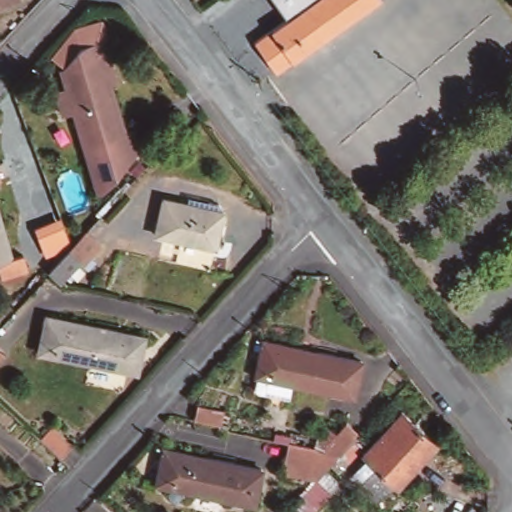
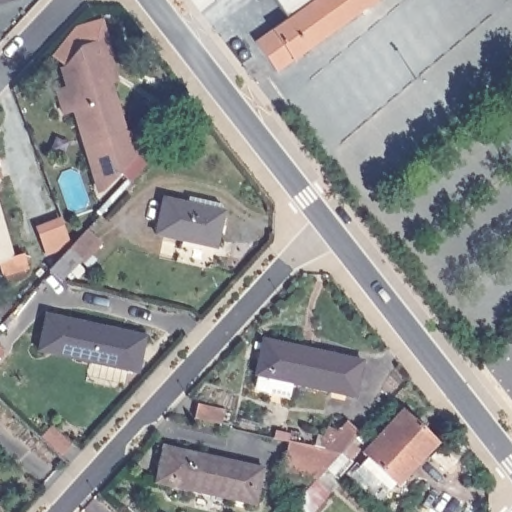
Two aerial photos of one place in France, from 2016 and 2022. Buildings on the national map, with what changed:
unchanged [(0,0),(21,0),(0,5),(0,0)]
unchanged [(379,0),(267,80),(265,81),(244,51),(315,0),(379,0)]
unchanged [(315,0),(288,19),(276,0),(315,0)]
unchanged [(130,135),(136,155),(97,196),(78,135),(60,71),(77,49),(102,41),(107,57),(105,58),(110,77),(113,85),(103,89),(117,138),(130,135)]
unchanged [(0,167),(2,177),(0,177),(0,167)]
unchanged [(165,199),(225,212),(217,247),(177,238),(157,234),(165,199)]
unchanged [(26,253),(30,268),(4,276),(0,267),(0,209),(13,256),(15,256),(26,253)]
unchanged [(81,260),(61,281),(50,270),(69,249),(81,260)]
unchanged [(46,314),(144,335),(147,336),(139,372),(39,351),(37,350),(46,314)]
unchanged [(0,357),(0,335),(10,346),(0,357)]
unchanged [(265,339),(364,361),(356,396),(293,382),(290,395),(263,389),(266,376),(255,374),(265,339)]
unchanged [(200,403),(224,409),(225,410),(222,422),(196,416),(200,403)]
unchanged [(402,410),(435,442),(436,443),(398,485),(363,453),(402,410)]
unchanged [(347,422),(358,432),(340,451),(330,441),(347,422)]
unchanged [(54,426),(74,445),(63,456),(43,437),(54,426)]
unchanged [(287,444),(315,450),(307,477),(280,471),(287,444)]
unchanged [(165,448),(166,447),(262,468),(263,469),(256,503),(157,482),(165,448)]
unchanged [(308,488),(322,501),(322,503),(313,512),(298,512),(291,506),(308,488)]

